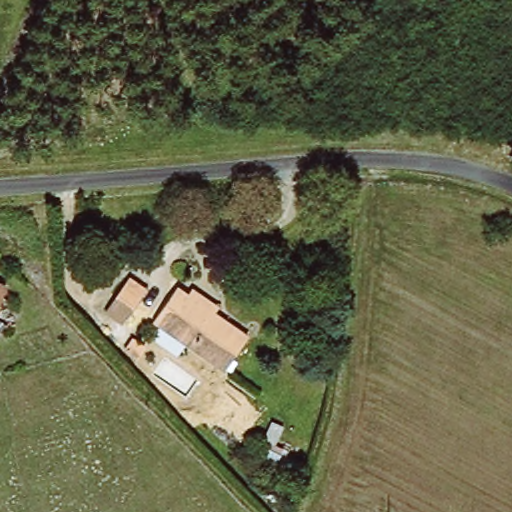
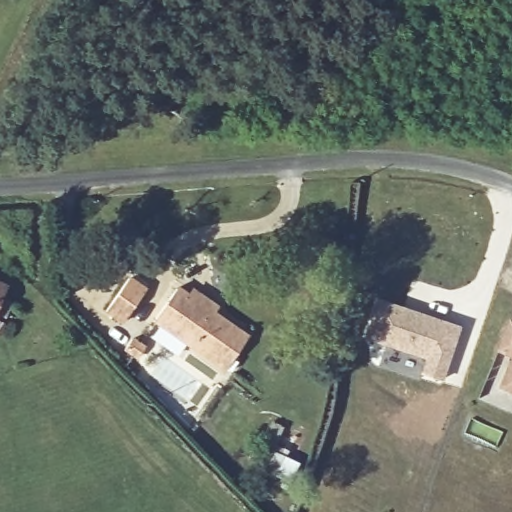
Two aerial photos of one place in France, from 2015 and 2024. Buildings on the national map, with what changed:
unchanged [(108,313),(131,282),(149,294),(124,326),(108,313)]
unchanged [(0,293),(0,284),(3,285),(0,293)]
unchanged [(158,323),(182,290),(252,341),(230,372),(158,323)]
new [(418,373),(423,360),(362,338),(374,299),(458,327),(440,380),(418,373)]
new [(512,324),(512,359),(498,353),(510,323),(512,324)]
new [(501,391),(512,364),(512,396),(501,391)]

